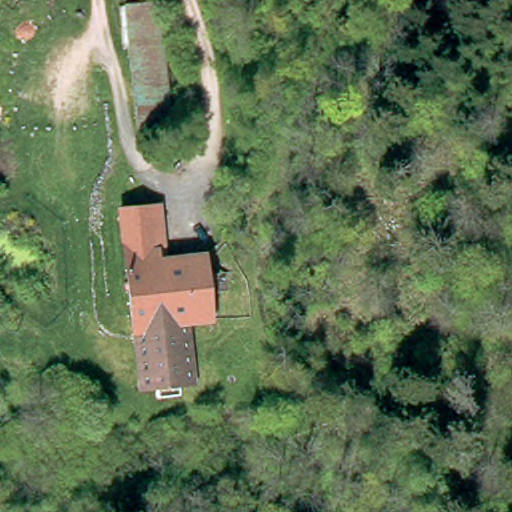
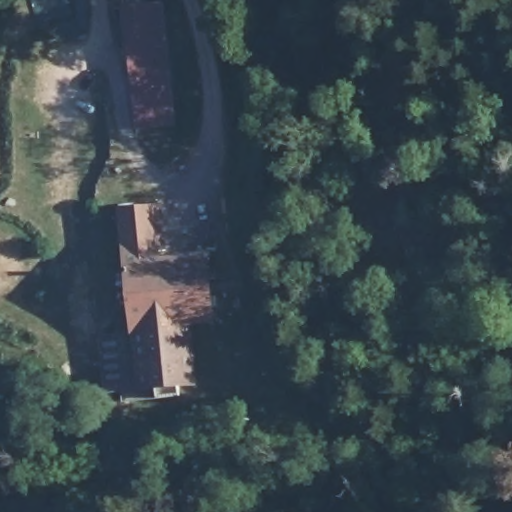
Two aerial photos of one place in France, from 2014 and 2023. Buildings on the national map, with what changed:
unchanged [(134,124),(120,8),(156,3),(169,120),(134,124)]
unchanged [(173,386),(174,398),(153,400),(152,390),(135,391),(134,382),(118,231),(116,208),(155,204),(163,261),(202,256),(208,321),(184,324),(188,377),(189,384),(173,386)]

